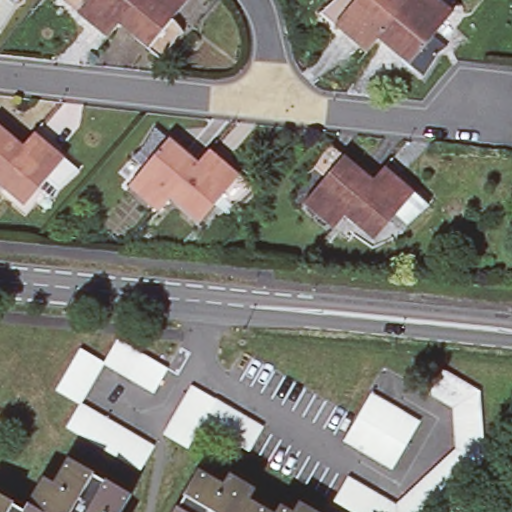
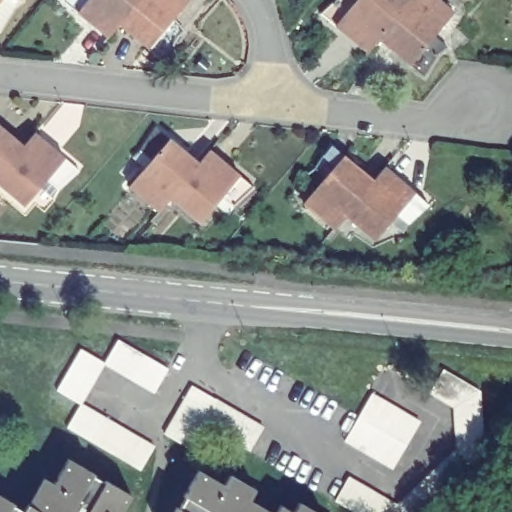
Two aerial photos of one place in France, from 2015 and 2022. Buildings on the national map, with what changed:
unchanged [(27,1),(20,9),(4,32),(0,28),(0,0),(26,0),(27,1)]
unchanged [(123,24),(124,24),(112,37),(82,12),(68,0),(143,0),(123,24)]
unchanged [(124,24),(123,24),(143,0),(192,0),(193,1),(175,21),(188,32),(182,37),(167,61),(153,49),(124,24)]
unchanged [(383,34),(383,35),(372,48),(340,21),(325,9),(335,0),(411,0),(383,34)]
unchanged [(443,47),(428,72),(415,61),(383,35),(383,34),(411,0),(449,0),(458,7),(438,31),(452,42),(443,47)]
unchanged [(24,142),(0,170),(0,122),(23,142),(24,142)]
unchanged [(145,164),(132,152),(140,146),(155,122),(170,134),(198,159),(199,160),(170,194),(158,207),(128,182),(145,164)]
unchanged [(58,185),(53,194),(40,182),(24,202),(0,181),(0,170),(24,142),(23,142),(35,128),(65,152),(79,166),(58,185)]
unchanged [(232,202),(228,210),(215,200),(199,219),(170,194),(199,160),(198,159),(210,145),(239,171),(253,182),(232,202)]
unchanged [(325,187),(312,174),(320,168),(335,145),(349,156),(378,181),(379,182),(350,216),(339,230),(309,206),(325,187)]
unchanged [(412,225),(408,232),(395,222),(380,241),(350,216),(379,182),(378,181),(390,167),(420,193),(433,205),(412,225)]
unchanged [(86,404),(62,391),(70,376),(77,364),(85,349),(109,363),(123,340),(137,348),(149,355),(161,362),(173,369),(159,393),(147,386),(135,379),(123,372),(109,364),(107,367),(101,378),(94,390),(86,404)]
unchanged [(437,467),(447,458),(457,449),(455,435),(454,422),(453,408),(453,407),(442,401),(429,393),(443,370),(455,377),(480,391),(482,420),(483,433),(485,460),(465,478),(455,488),(445,497),(435,506),(429,512),(353,512),(347,508),(335,501),(348,477),(361,485),(373,492),(386,499),(386,500),(396,505),(407,496),(417,486),(427,477),(437,467)]
unchanged [(231,437),(219,431),(207,424),(200,437),(193,448),(170,434),(176,422),(183,410),(190,398),(197,386),(221,400),(233,407),(245,414),(257,421),(268,427),(255,452),(243,445),(231,437)]
unchanged [(368,455),(357,448),(345,441),(358,417),(372,394),(384,402),(396,408),(407,415),(420,422),(406,446),(392,469),(380,462),(368,455)]
unchanged [(72,427),(86,404),(100,412),(112,419),(123,426),(135,433),(147,440),(160,447),(145,471),(133,463),(122,457),(110,450),(98,443),(86,436),(72,427)]
unchanged [(14,498),(12,501),(24,507),(43,473),(53,478),(68,453),(95,469),(93,471),(104,477),(105,476),(132,491),(119,512),(0,512),(0,490),(14,498)]
unchanged [(178,503),(185,492),(183,491),(198,465),(223,480),(229,470),(255,486),(250,495),(275,510),(280,500),(293,507),(298,498),(322,512),(171,512),(177,502),(178,503)]

